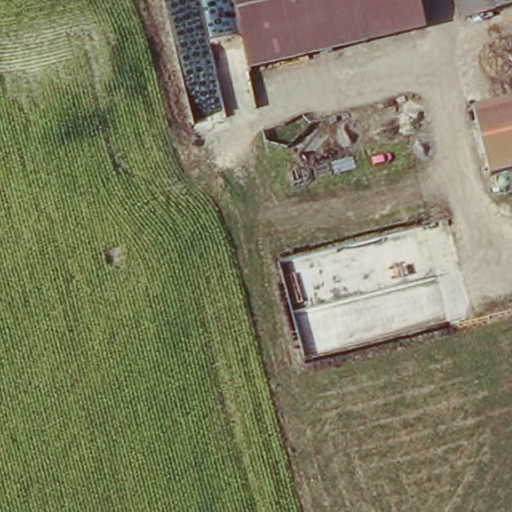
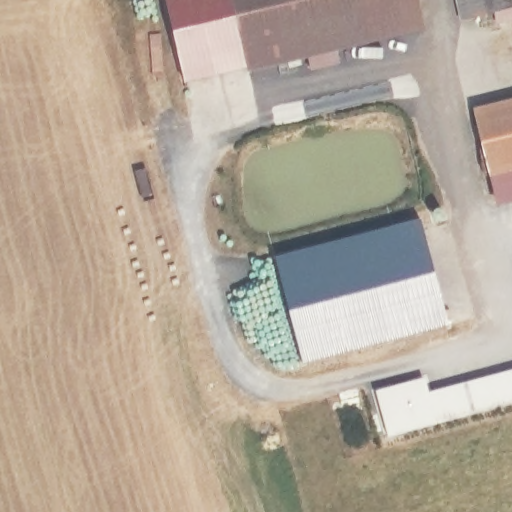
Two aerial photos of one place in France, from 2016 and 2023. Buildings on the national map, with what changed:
unchanged [(425,32),(247,72),(229,0),(418,0),(425,32)]
unchanged [(492,11),(462,18),(457,0),(490,0),(492,11)]
unchanged [(512,7),(492,11),(490,0),(512,0),(512,7)]
unchanged [(512,174),(487,179),(473,112),(512,104),(512,174)]
new [(416,221),(445,325),(300,363),(273,255),(416,221)]
new [(427,393),(512,374),(512,402),(388,431),(378,390),(425,379),(427,393)]

